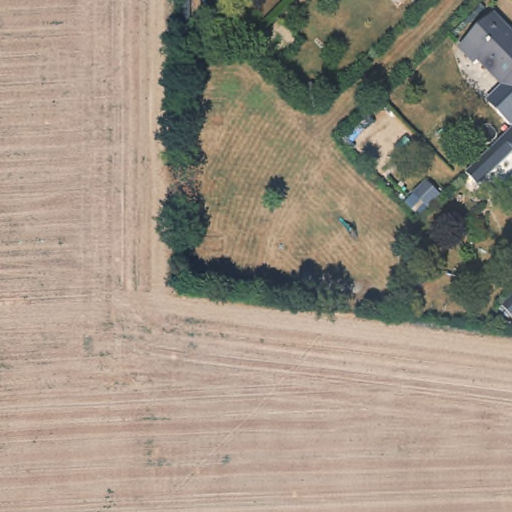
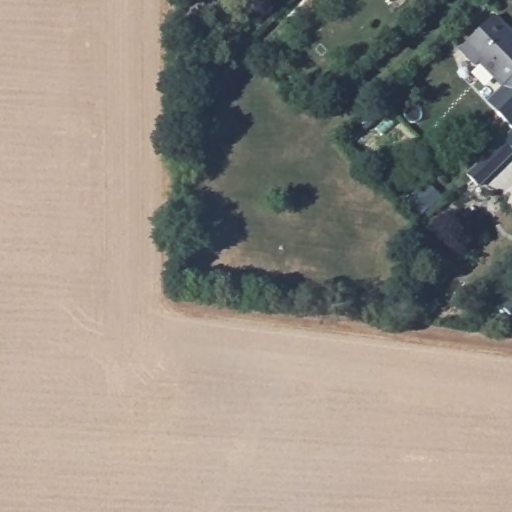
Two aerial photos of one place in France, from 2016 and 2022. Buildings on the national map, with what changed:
unchanged [(407,1),(406,0),(407,0),(407,1)]
unchanged [(512,92),(480,59),(476,63),(458,45),(492,14),(512,35),(512,92)]

